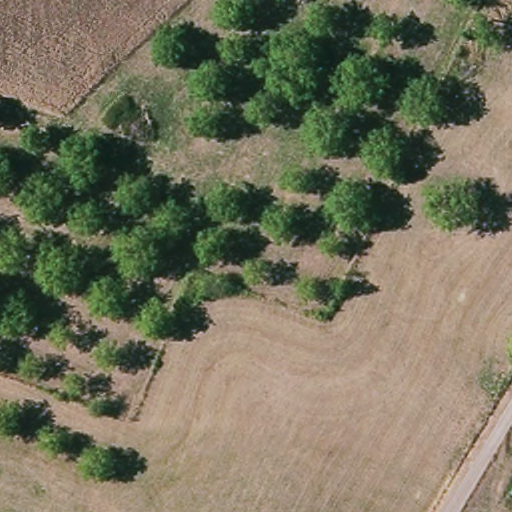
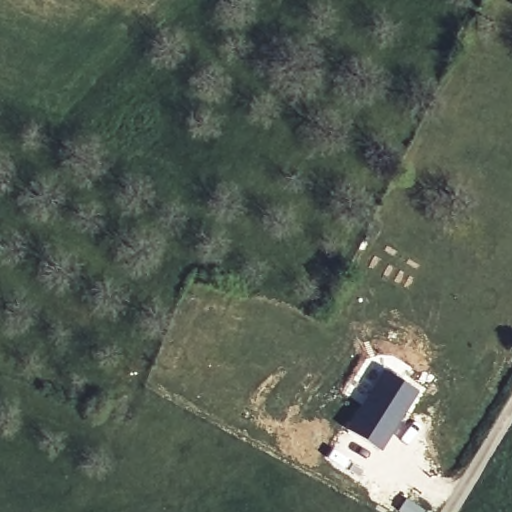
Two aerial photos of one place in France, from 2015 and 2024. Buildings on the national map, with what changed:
new [(418,393),(382,452),(347,430),(383,372),(418,393)]

